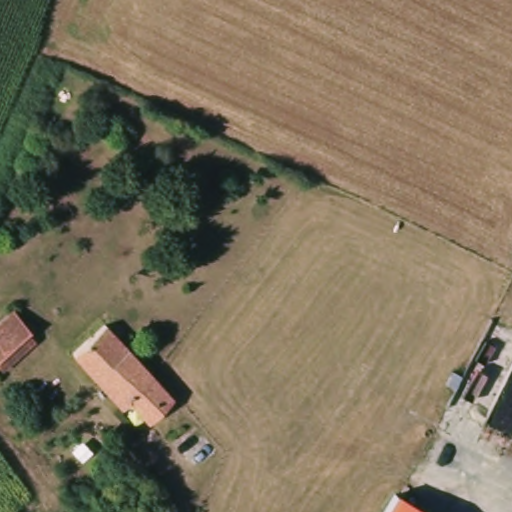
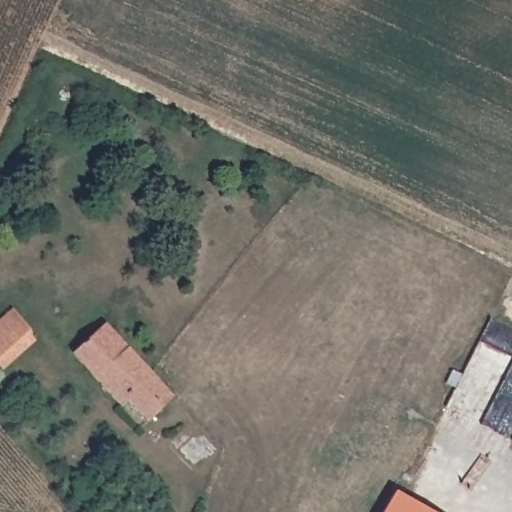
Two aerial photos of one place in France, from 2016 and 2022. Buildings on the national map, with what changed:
unchanged [(0,366),(0,323),(15,310),(37,342),(6,373),(0,366)]
unchanged [(130,401),(122,408),(74,354),(106,324),(127,348),(173,398),(148,421),(130,401)]
unchanged [(427,512),(385,512),(396,494),(427,512)]

